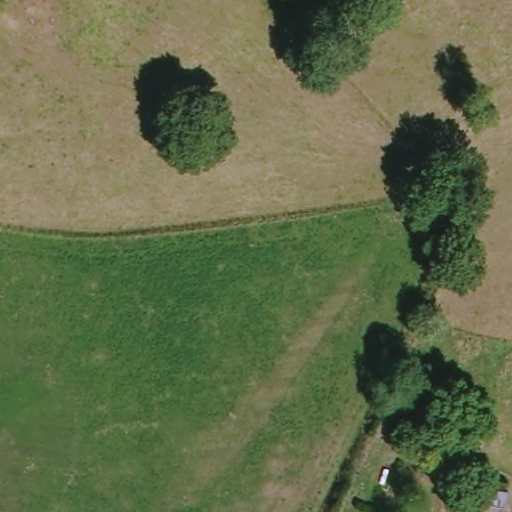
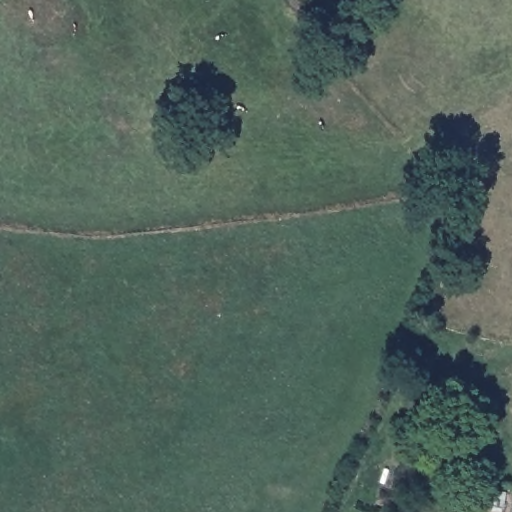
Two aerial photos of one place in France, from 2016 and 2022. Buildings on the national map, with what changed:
[]

